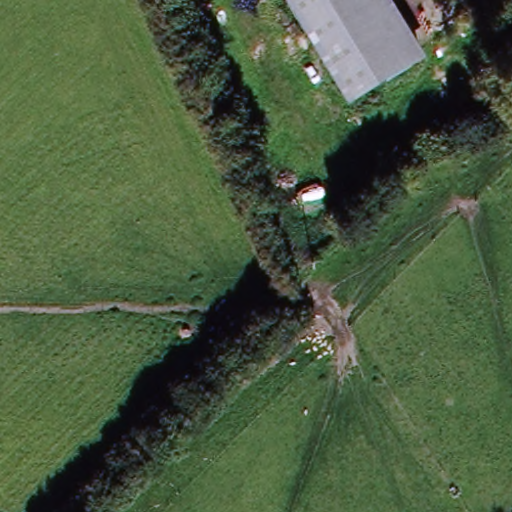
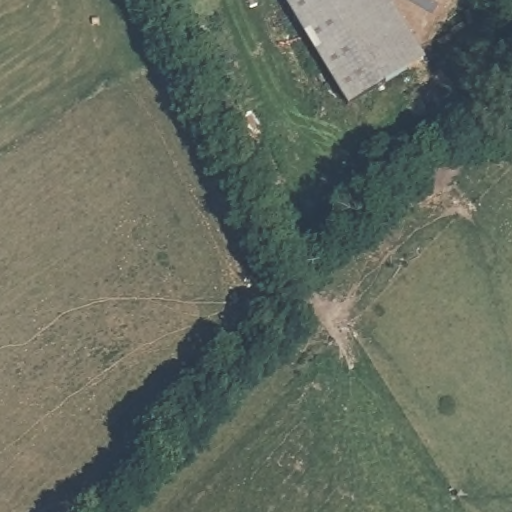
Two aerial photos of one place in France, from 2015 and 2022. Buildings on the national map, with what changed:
unchanged [(347,106),(282,0),(388,0),(424,60),(347,106)]

